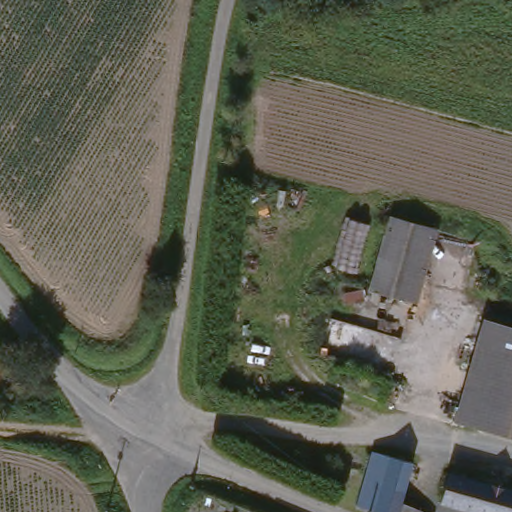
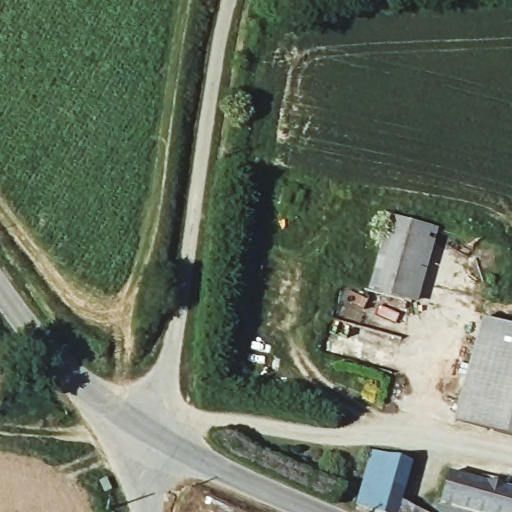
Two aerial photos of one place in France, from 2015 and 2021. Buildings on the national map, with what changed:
unchanged [(443,227),(424,301),(374,288),(394,214),(443,227)]
unchanged [(465,396),(493,312),(512,318),(512,411),(465,396)]
unchanged [(460,413),(465,396),(512,411),(512,428),(460,413)]
unchanged [(370,443),(410,458),(393,512),(374,512),(348,503),(370,443)]
unchanged [(443,500),(454,467),(512,485),(512,512),(482,512),(443,500)]

